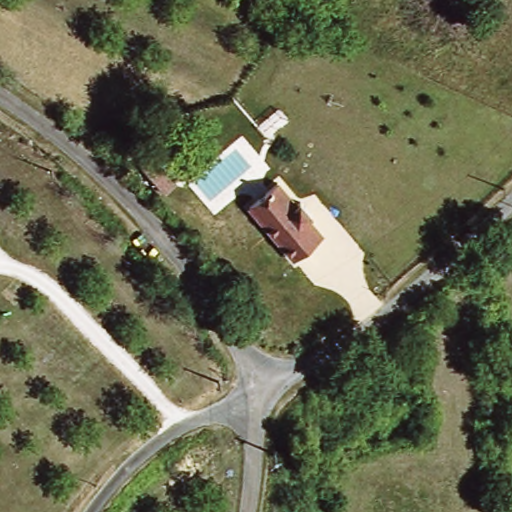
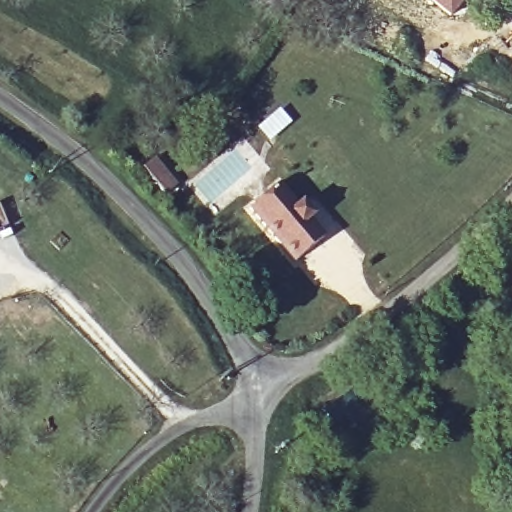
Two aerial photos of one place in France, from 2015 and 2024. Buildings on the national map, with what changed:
new [(450,17),(431,0),(464,0),(450,17)]
unchanged [(292,260),(248,206),(282,179),(297,199),(302,195),(319,216),(315,221),(325,234),(292,260)]

